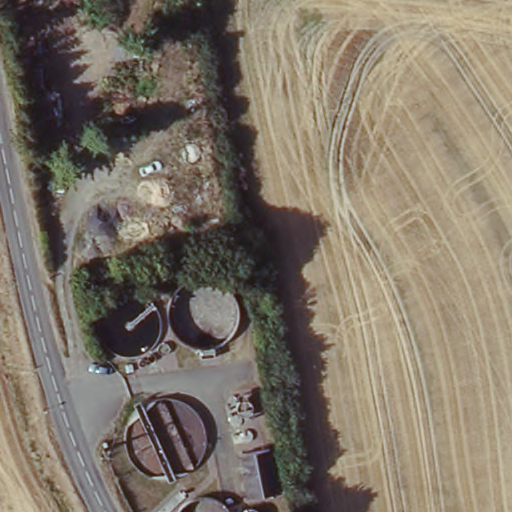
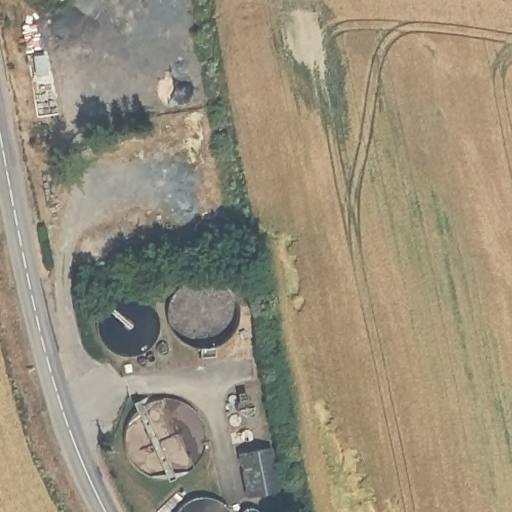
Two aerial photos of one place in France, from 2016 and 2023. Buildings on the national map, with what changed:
unchanged [(272,446),(279,487),(248,492),(240,452),(272,446)]

